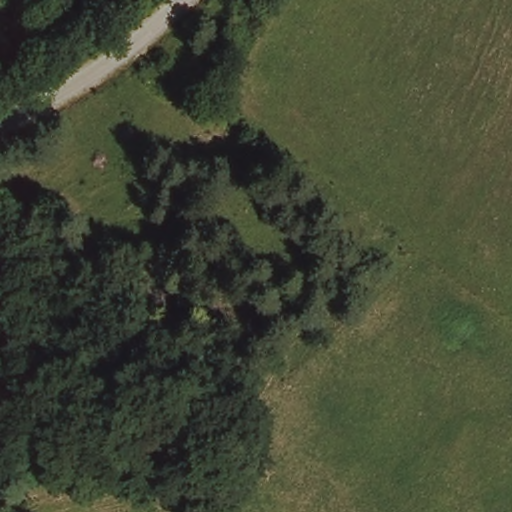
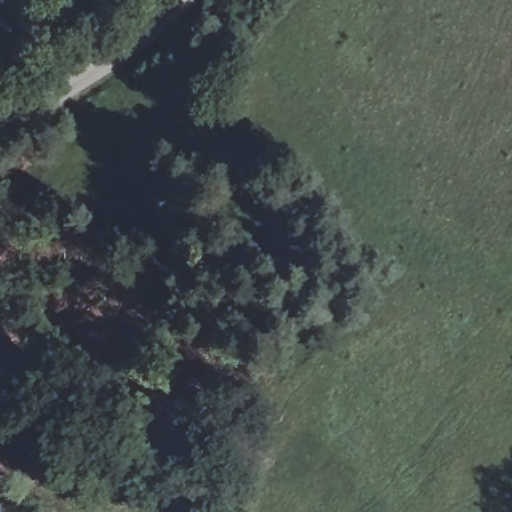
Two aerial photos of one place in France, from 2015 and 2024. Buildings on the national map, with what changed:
[]

